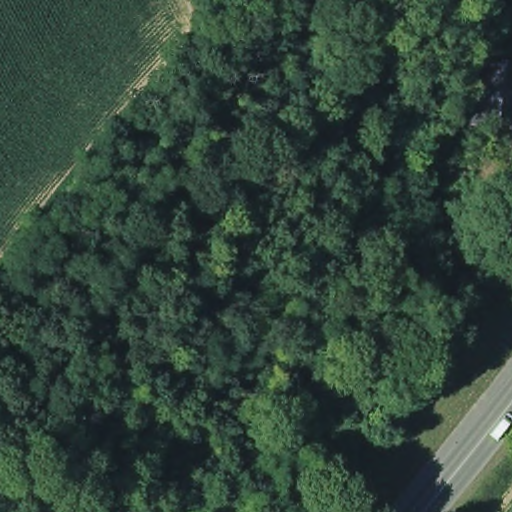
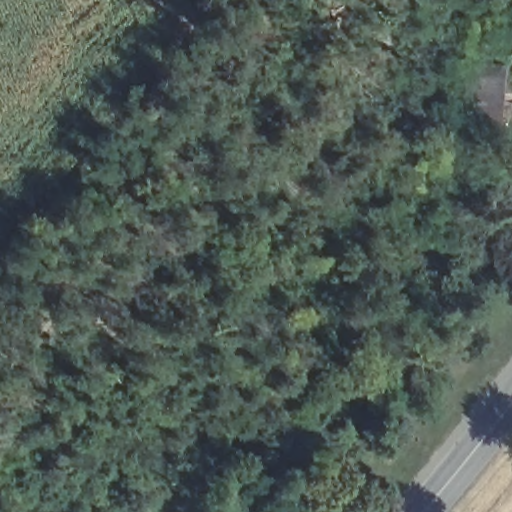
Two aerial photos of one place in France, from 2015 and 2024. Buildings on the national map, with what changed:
unchanged [(470,114),(469,107),(473,64),(510,69),(508,80),(507,105),(506,105),(505,106),(505,117),(503,127),(502,129),(467,125),(466,115),(467,114),(468,114),(470,114)]

